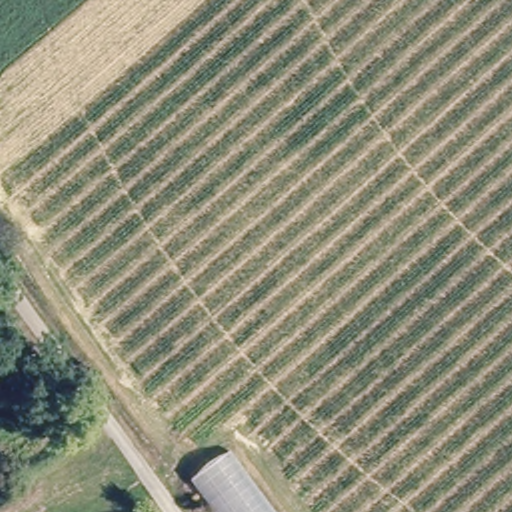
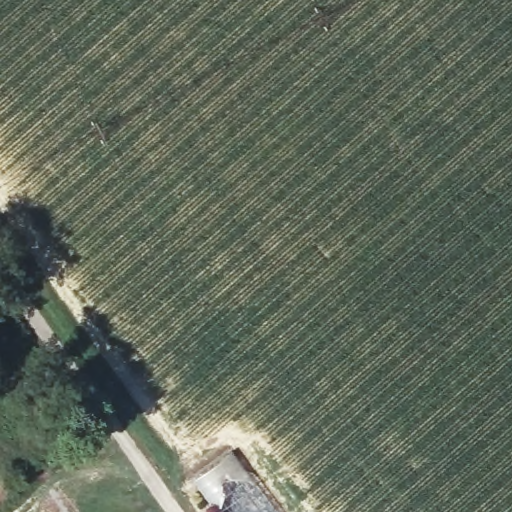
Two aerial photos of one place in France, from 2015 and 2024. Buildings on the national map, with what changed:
unchanged [(276,512),(211,512),(188,482),(232,451),(276,512)]

